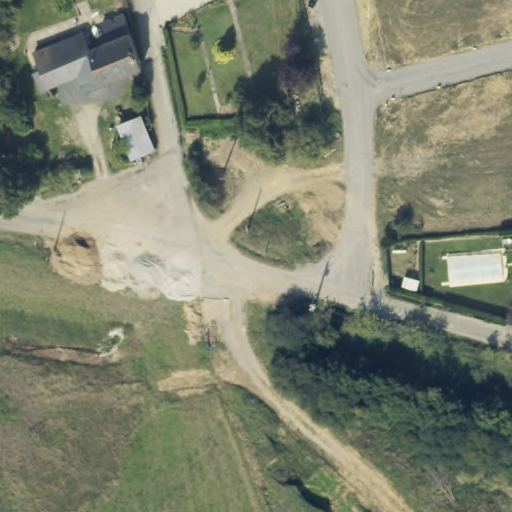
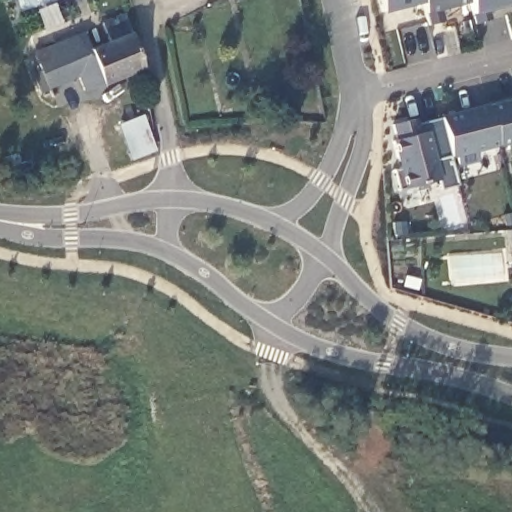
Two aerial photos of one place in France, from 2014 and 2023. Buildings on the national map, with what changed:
new [(489,8),(491,20),(474,25),(471,12),(468,4),(441,10),(444,22),(429,25),(426,15),(423,4),(379,14),(376,0),(512,0),(512,2),(489,8)]
unchanged [(34,55),(84,33),(91,49),(109,41),(129,32),(134,46),(139,65),(138,65),(82,89),(75,74),(48,85),(49,87),(42,90),(34,72),(41,70),(34,55)]
new [(416,119),(417,124),(440,120),(439,116),(512,98),(512,149),(506,150),(503,145),(476,151),(479,160),(452,168),(457,185),(440,189),(438,180),(397,189),(393,170),(397,169),(390,141),(395,140),(391,124),(416,119)]
unchanged [(121,129),(145,119),(151,151),(140,155),(134,157),(121,129)]

